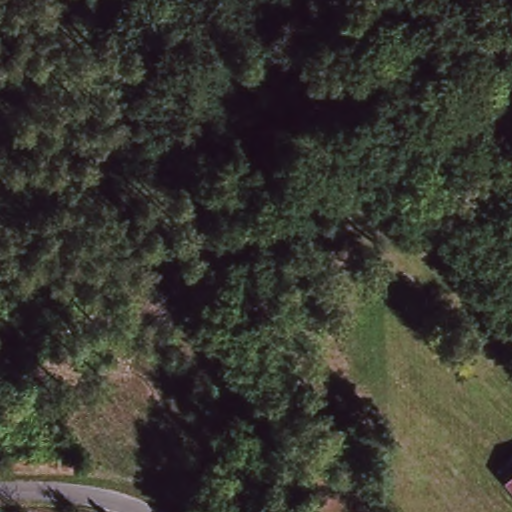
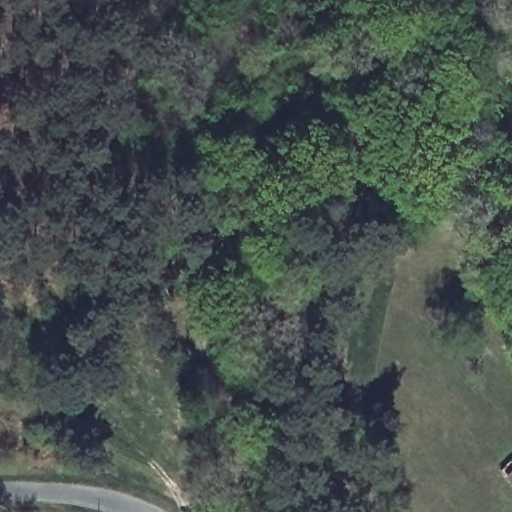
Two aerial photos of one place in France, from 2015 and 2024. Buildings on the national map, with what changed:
unchanged [(510,471),(512,470),(512,474),(510,471)]

